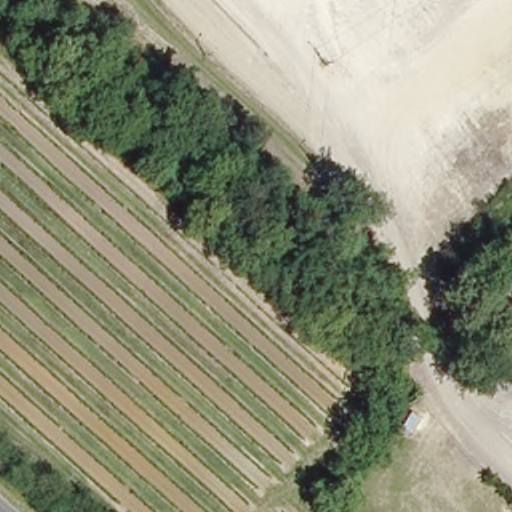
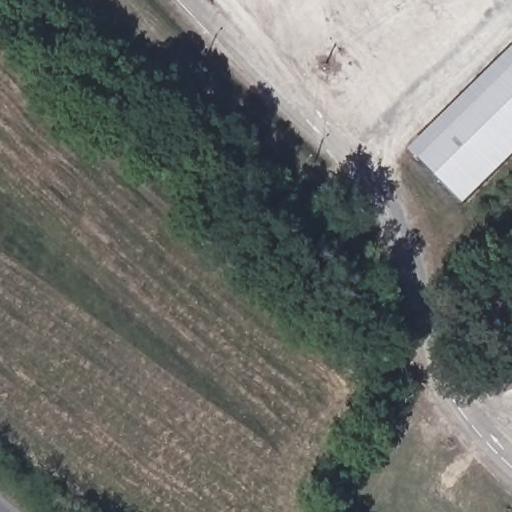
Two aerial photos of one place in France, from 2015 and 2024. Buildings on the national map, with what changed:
new [(411,147),(512,48),(512,156),(465,202),(411,147)]

